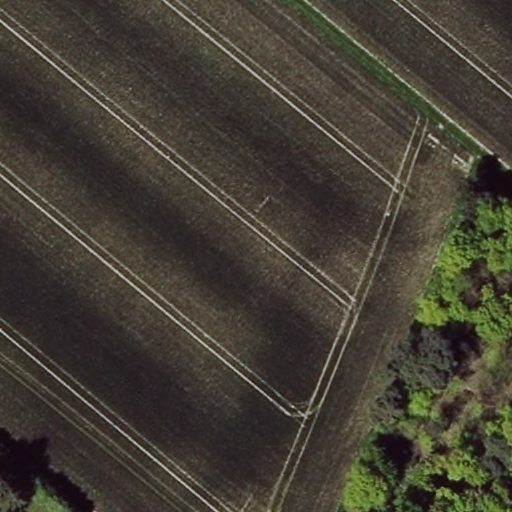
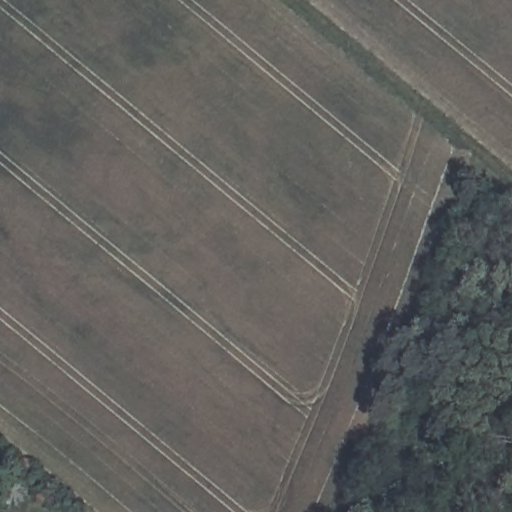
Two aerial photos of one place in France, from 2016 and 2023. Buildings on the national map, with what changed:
[]

